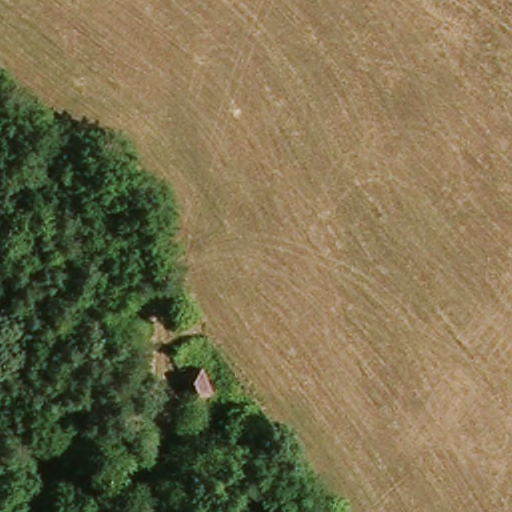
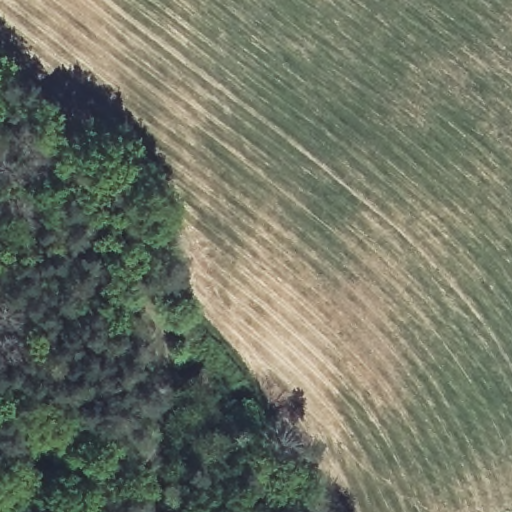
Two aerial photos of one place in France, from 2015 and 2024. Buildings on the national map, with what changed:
unchanged [(215,388),(192,397),(180,372),(202,362),(215,388)]

